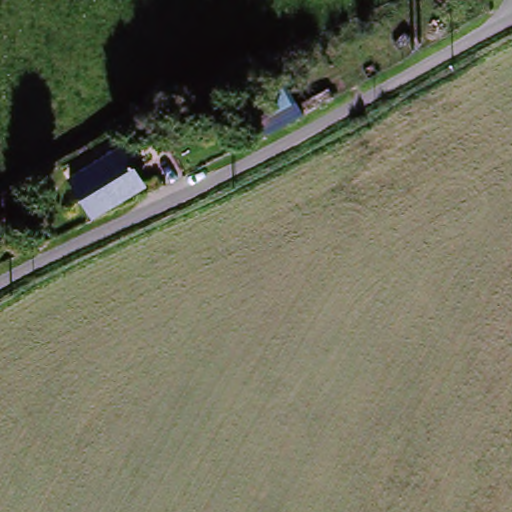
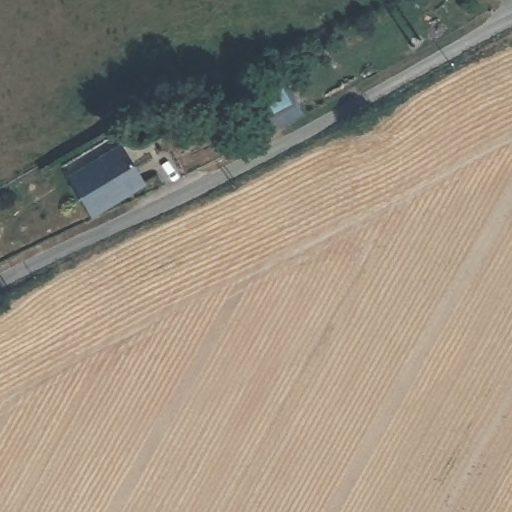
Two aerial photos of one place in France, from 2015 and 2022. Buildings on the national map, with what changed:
unchanged [(290,104),(295,101),(301,114),(254,140),(249,129),(260,122),(249,103),(281,86),(290,104)]
unchanged [(142,183),(88,214),(67,177),(121,148),(142,183)]

